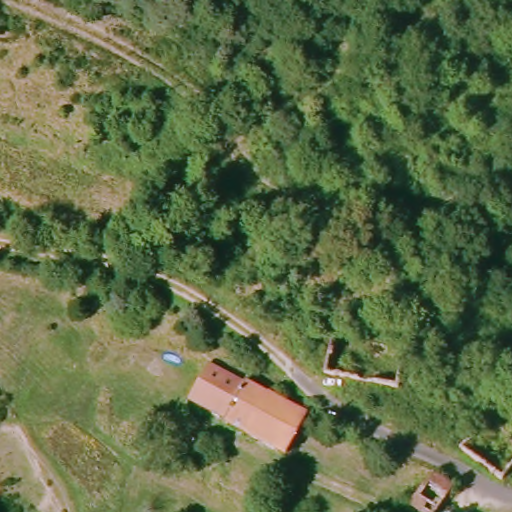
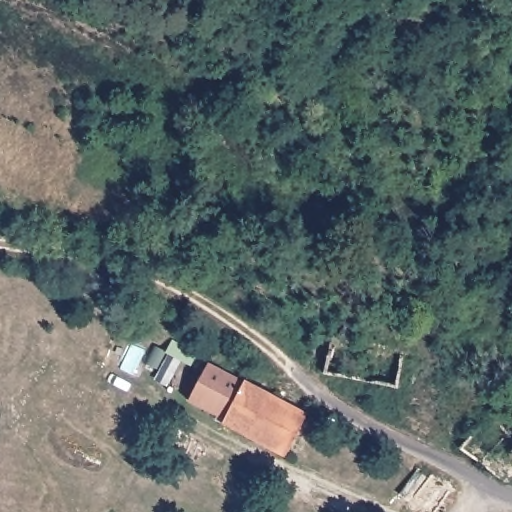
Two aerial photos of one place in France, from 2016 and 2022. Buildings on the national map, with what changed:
unchanged [(312,417),(290,459),(270,446),(226,425),(226,421),(191,404),(211,363),(312,417)]
unchanged [(191,444),(182,463),(155,451),(164,431),(191,444)]
unchanged [(450,482),(429,512),(427,512),(412,498),(432,468),(450,482)]

